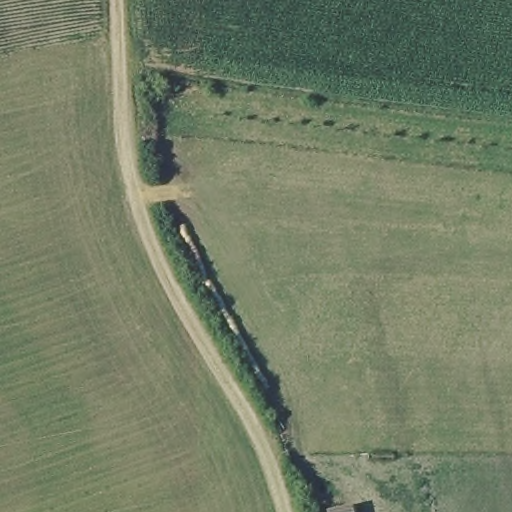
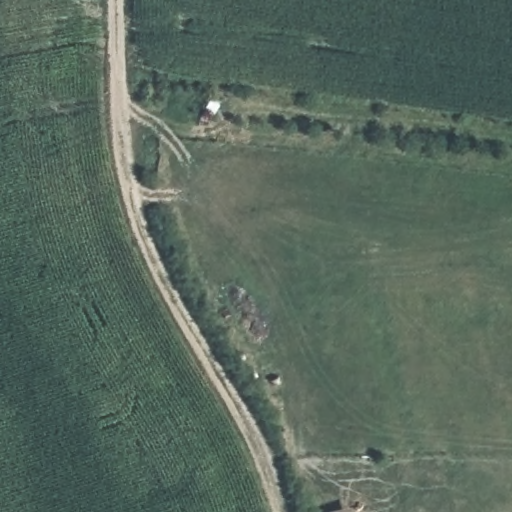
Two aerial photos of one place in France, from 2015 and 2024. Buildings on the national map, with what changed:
unchanged [(356,512),(330,512),(330,511),(354,506),(356,512)]

